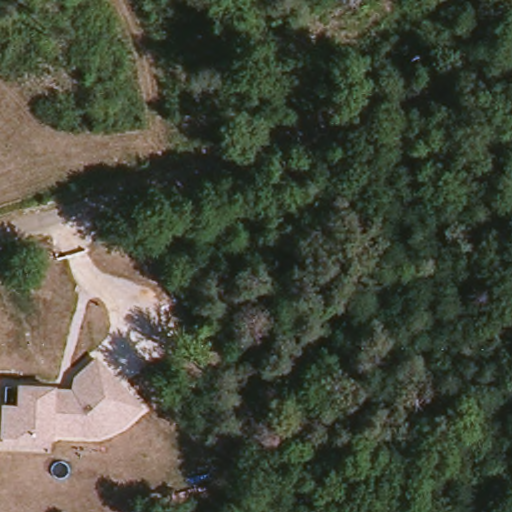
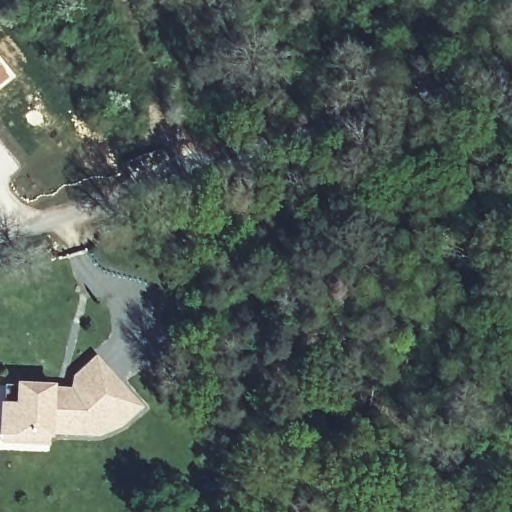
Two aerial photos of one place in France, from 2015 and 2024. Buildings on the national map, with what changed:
new [(0,86),(0,60),(12,76),(0,86)]
unchanged [(19,404),(20,384),(57,387),(72,388),(75,375),(97,359),(144,409),(107,437),(54,437),(53,446),(2,444),(4,403),(19,404)]

